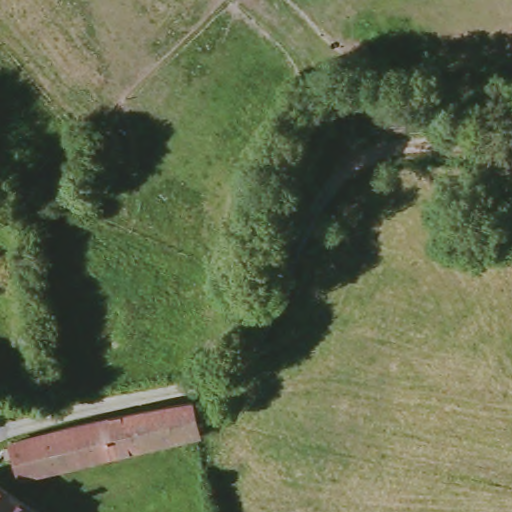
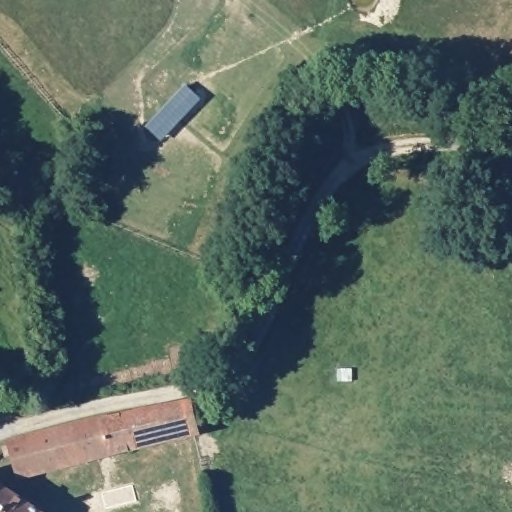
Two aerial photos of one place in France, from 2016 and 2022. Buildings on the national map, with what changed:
new [(161,142),(146,129),(185,86),(202,101),(161,142)]
unchanged [(190,434),(127,447),(120,416),(185,401),(186,407),(190,434)]
unchanged [(127,447),(11,473),(1,444),(120,416),(127,447)]
unchanged [(25,492),(44,505),(40,511),(43,512),(0,512),(0,484),(22,498),(25,492)]

